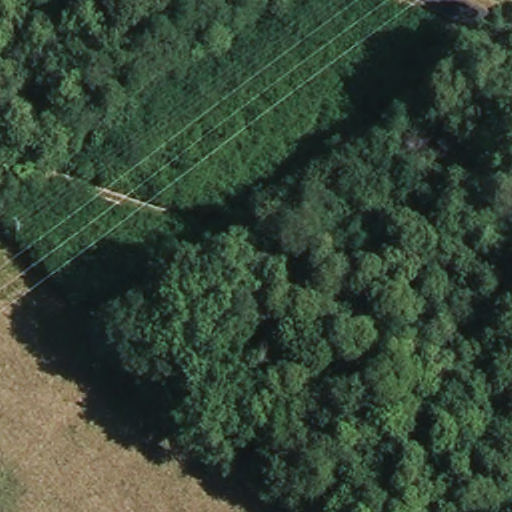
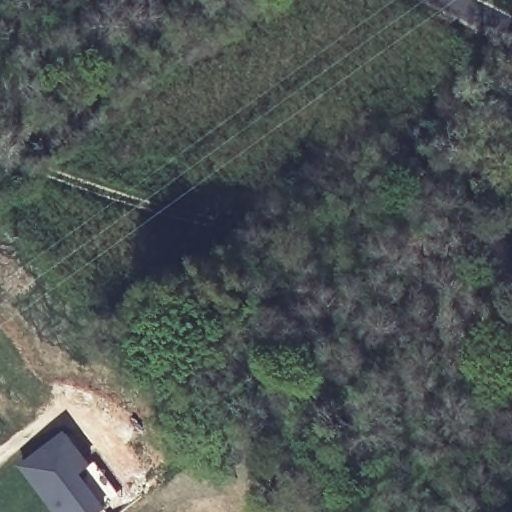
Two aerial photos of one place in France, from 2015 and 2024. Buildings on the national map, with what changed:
new [(20,466),(66,432),(91,465),(81,474),(106,510),(104,512),(55,512),(20,466)]

